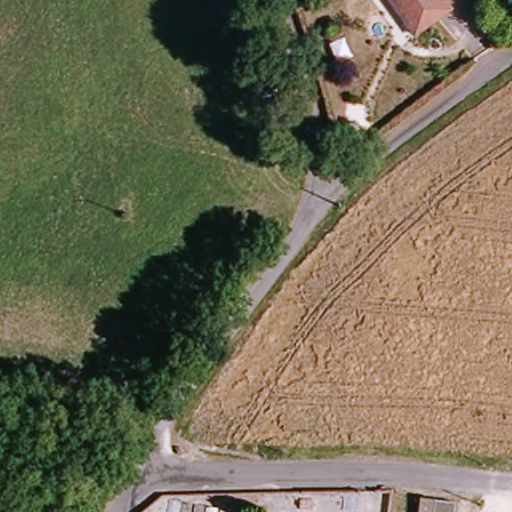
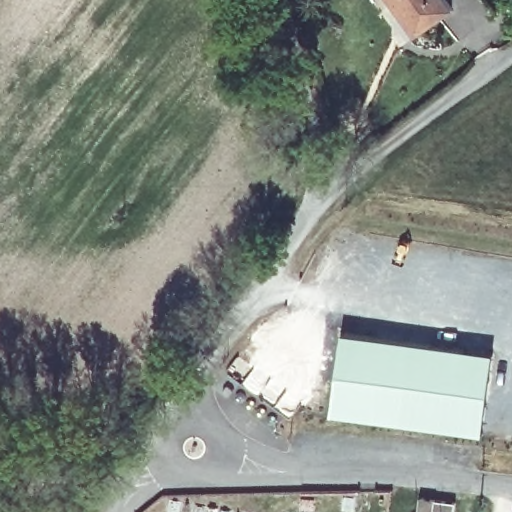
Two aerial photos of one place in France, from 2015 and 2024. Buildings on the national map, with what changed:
unchanged [(387,0),(452,0),(458,6),(430,30),(422,37),(409,23),(387,0)]
new [(352,333),(472,350),(461,431),(341,414),(352,333)]
new [(472,350),(502,354),(491,435),(461,431),(472,350)]

